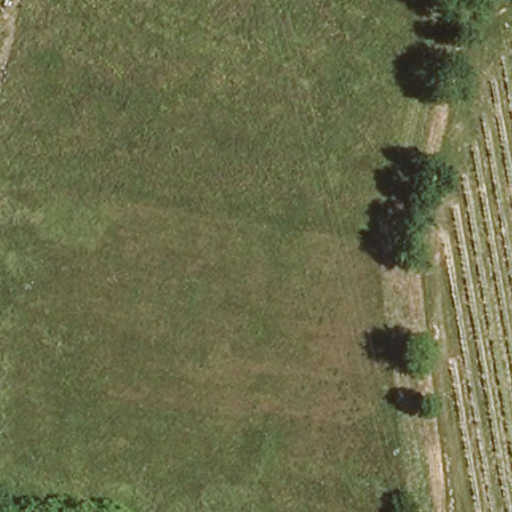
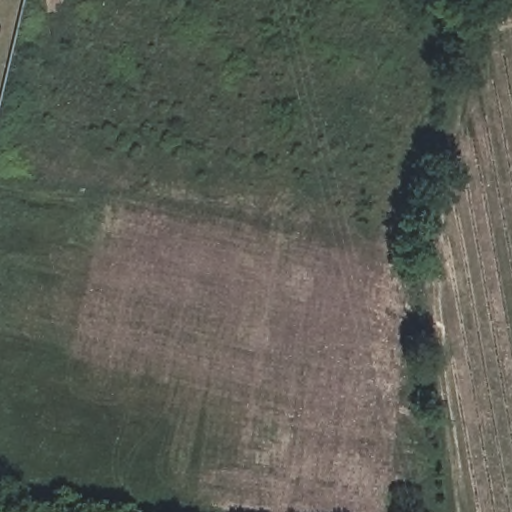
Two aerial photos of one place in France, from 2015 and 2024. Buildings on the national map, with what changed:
[]

